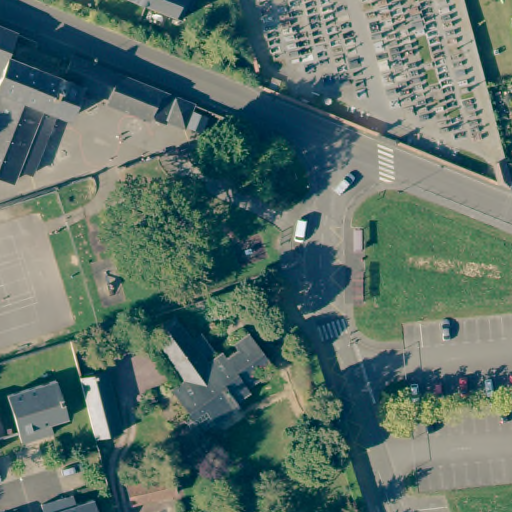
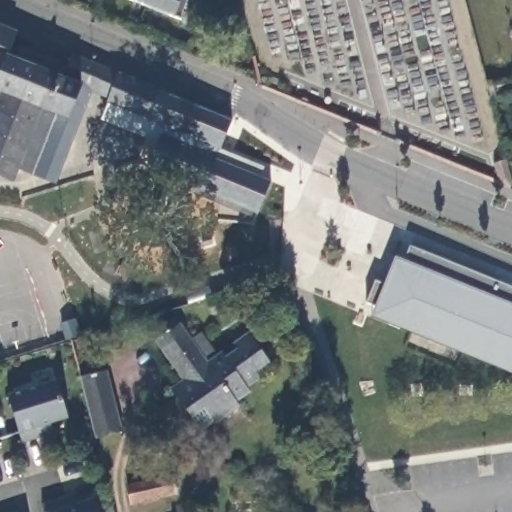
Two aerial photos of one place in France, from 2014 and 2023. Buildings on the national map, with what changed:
unchanged [(129,0),(187,0),(179,20),(129,0)]
unchanged [(68,80),(78,55),(146,84),(198,105),(189,129),(171,121),(170,124),(155,118),(154,120),(112,104),(114,99),(86,87),(73,120),(60,115),(35,176),(22,170),(17,182),(0,175),(0,114),(1,110),(0,109),(0,25),(21,34),(11,56),(68,80)]
unchanged [(512,185),(512,189),(498,184),(493,165),(506,161),(512,185)]
new [(512,288),(512,375),(370,317),(394,256),(406,261),(409,246),(512,288)]
unchanged [(196,423),(176,395),(188,386),(201,376),(195,368),(187,373),(185,374),(183,374),(181,373),(179,372),(177,371),(174,366),(159,346),(184,328),(198,348),(213,367),(226,357),(229,361),(241,353),(238,349),(253,338),(273,366),(260,376),(263,380),(249,390),(253,395),(239,405),(242,409),(218,426),(205,436),(196,423)]
unchanged [(101,366),(116,427),(90,435),(75,373),(101,366)]
unchanged [(54,435),(23,445),(8,397),(57,382),(68,420),(51,425),(54,435)]
unchanged [(132,504),(127,487),(171,477),(175,494),(132,504)]
unchanged [(88,495),(94,512),(40,512),(37,501),(61,493),(68,491),(71,500),(88,495)]
unchanged [(15,512),(1,512),(14,508),(15,512)]

